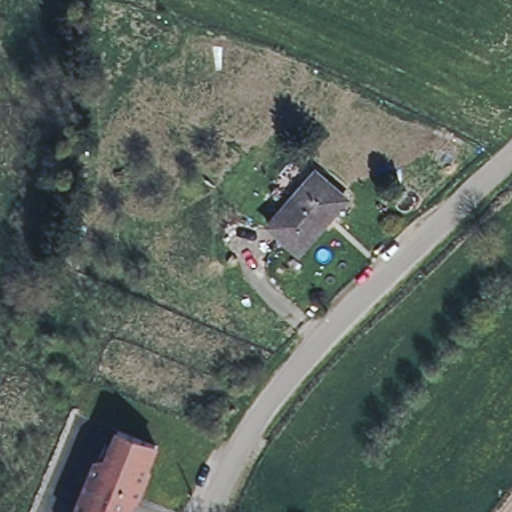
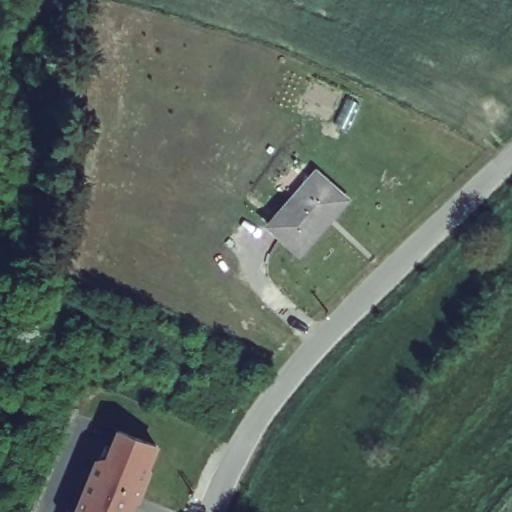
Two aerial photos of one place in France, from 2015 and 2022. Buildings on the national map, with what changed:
unchanged [(272,225),(318,172),(350,199),(304,252),(272,225)]
unchanged [(115,444),(121,447),(127,430),(165,445),(149,482),(153,484),(145,503),(140,501),(135,512),(136,512),(86,512),(107,461),(115,444)]

